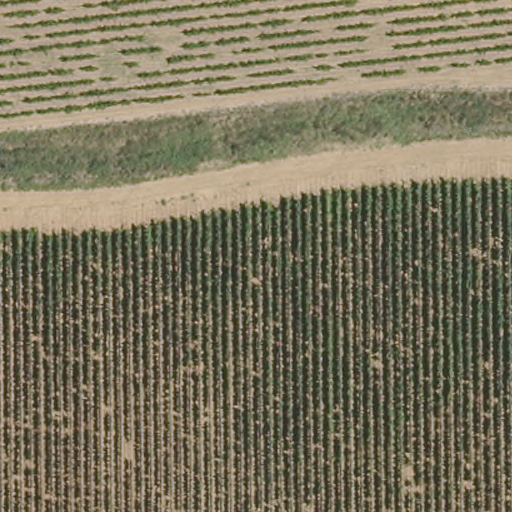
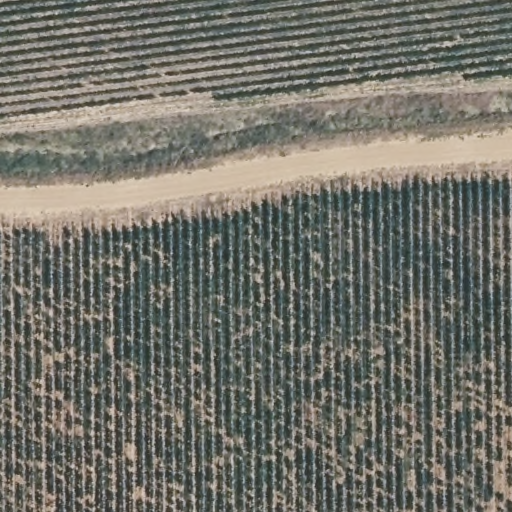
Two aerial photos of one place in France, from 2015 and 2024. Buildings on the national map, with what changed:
[]

